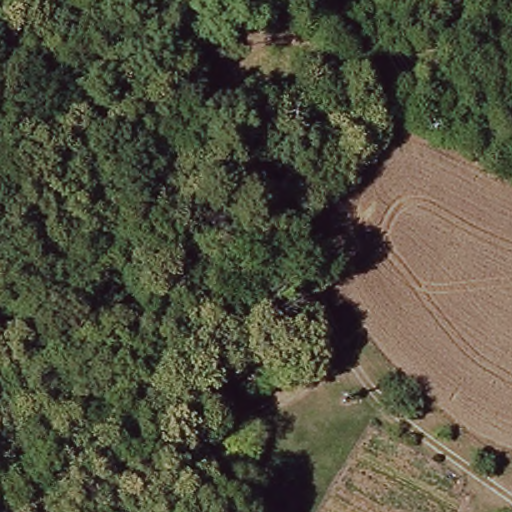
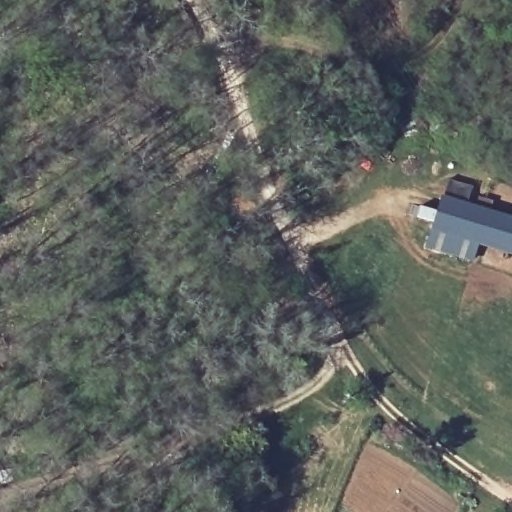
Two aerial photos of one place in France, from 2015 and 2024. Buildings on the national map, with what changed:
new [(512,217),(512,255),(478,245),(472,263),(424,248),(440,195),(512,217)]

